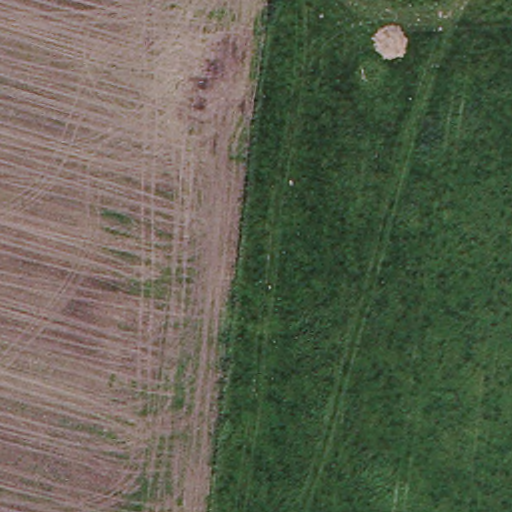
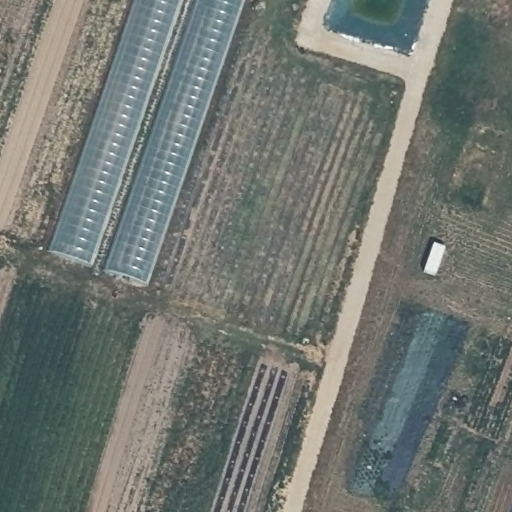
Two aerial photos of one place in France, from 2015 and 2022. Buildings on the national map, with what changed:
new [(52,251),(136,0),(182,0),(93,265),(52,251)]
new [(107,271),(198,0),(244,0),(149,285),(107,271)]

